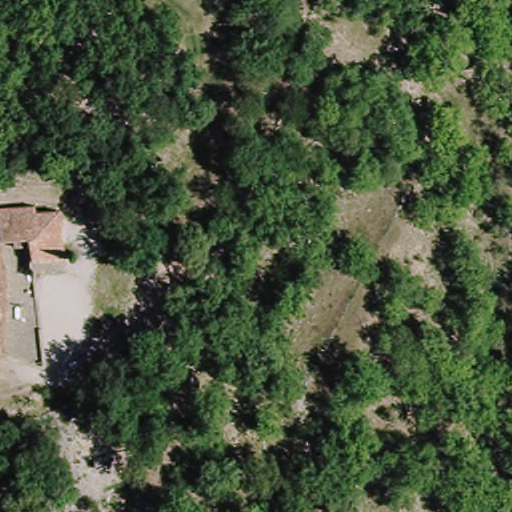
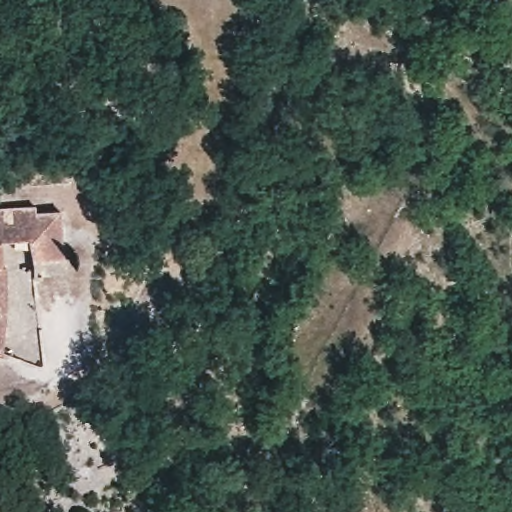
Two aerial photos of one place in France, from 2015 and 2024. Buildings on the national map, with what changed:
unchanged [(73,274),(45,274),(45,249),(31,248),(30,240),(6,238),(3,348),(0,347),(0,200),(7,200),(8,209),(69,203),(72,254),(73,274)]

